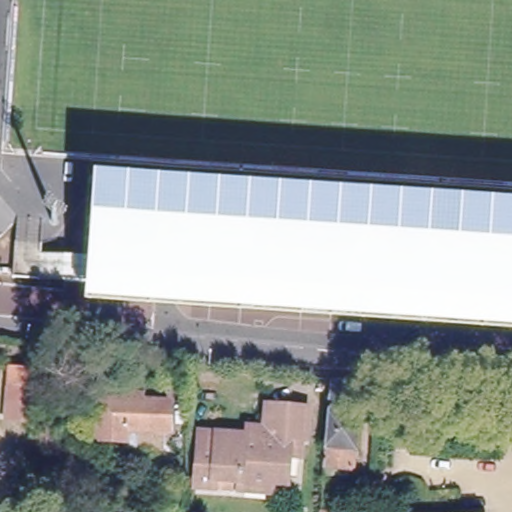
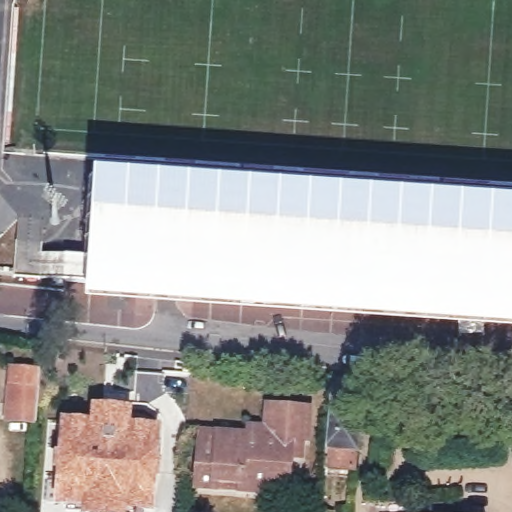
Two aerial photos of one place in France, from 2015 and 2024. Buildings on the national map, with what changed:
unchanged [(60,257),(84,258),(89,177),(512,205),(512,314),(83,285),(59,283),(60,257)]
unchanged [(31,434),(1,433),(4,380),(36,382),(31,434)]
demolished [(124,442),(125,434),(97,433),(100,393),(125,394),(126,386),(156,387),(156,394),(172,394),(170,426),(165,426),(130,424),(129,442),(124,442)]
unchanged [(330,396),(360,399),(357,425),(361,426),(357,463),(325,460),(330,396)]
new [(90,418),(91,401),(134,407),(133,421),(161,424),(154,511),(126,508),(125,512),(81,512),(82,506),(54,501),(63,414),(90,418)]
unchanged [(196,484),(201,429),(249,433),(250,424),(265,426),(267,404),(307,407),(304,438),(299,437),(298,455),(289,454),(287,470),(287,480),(270,479),(269,489),(239,487),(214,485),(196,484)]
unchanged [(329,510),(328,512),(315,512),(315,509),(329,510)]
unchanged [(484,511),(484,512),(462,512),(484,511)]

